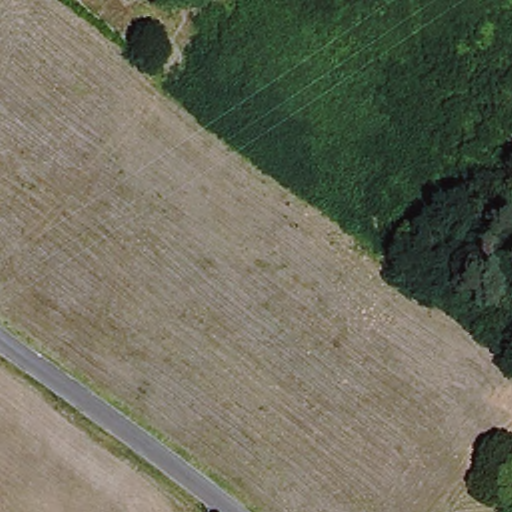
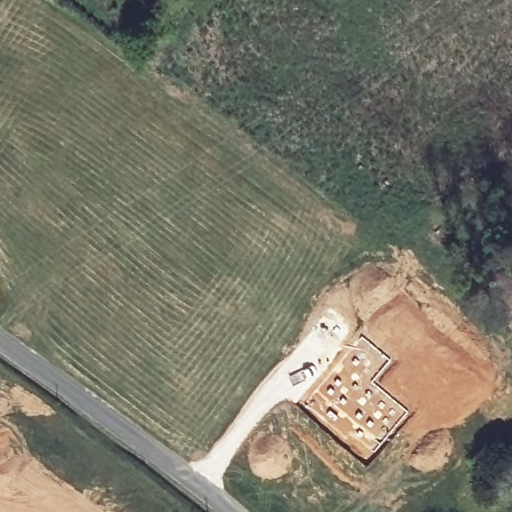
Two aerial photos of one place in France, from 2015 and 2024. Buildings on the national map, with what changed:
new [(346,344),(350,346),(361,333),(392,360),(376,381),(410,412),(365,463),(297,402),(346,344)]

